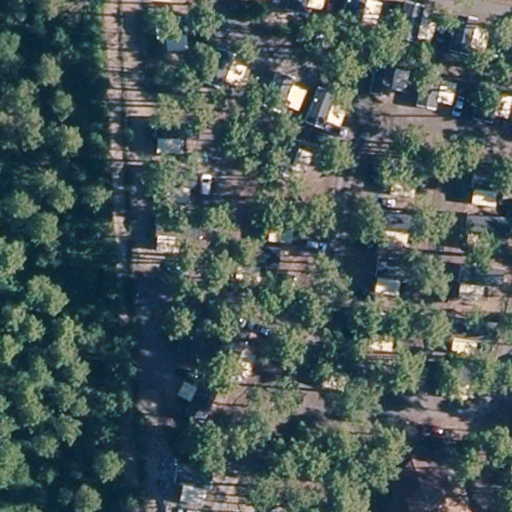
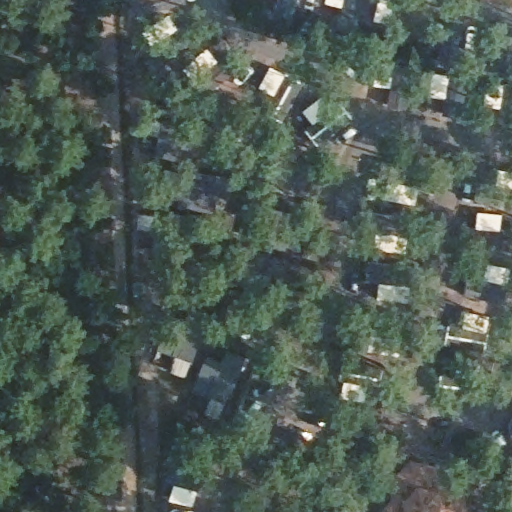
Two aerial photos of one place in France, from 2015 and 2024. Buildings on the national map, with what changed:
unchanged [(432,470),(438,485),(450,489),(458,512),(425,512),(428,508),(425,496),(414,494),(405,504),(407,512),(375,512),(380,506),(376,493),(401,464),(432,470)]

